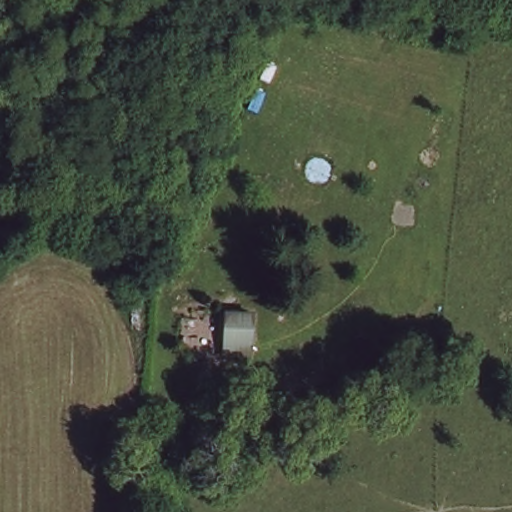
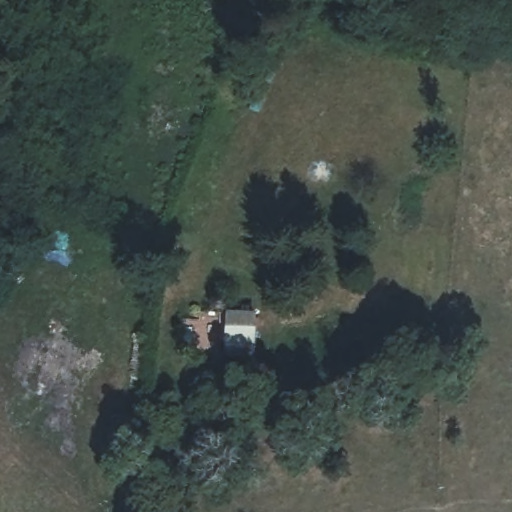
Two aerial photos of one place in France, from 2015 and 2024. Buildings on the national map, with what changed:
unchanged [(225,353),(223,316),(252,313),(255,352),(225,353)]

